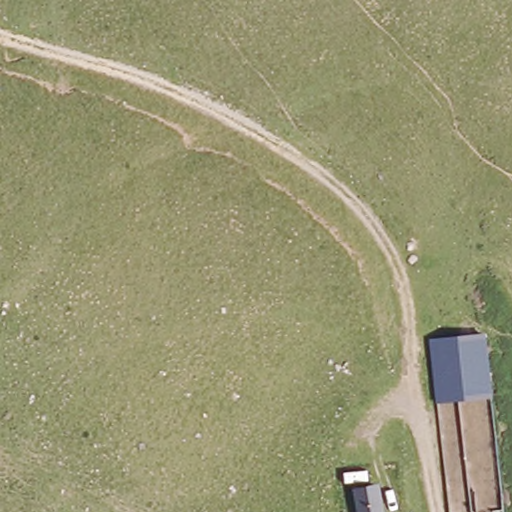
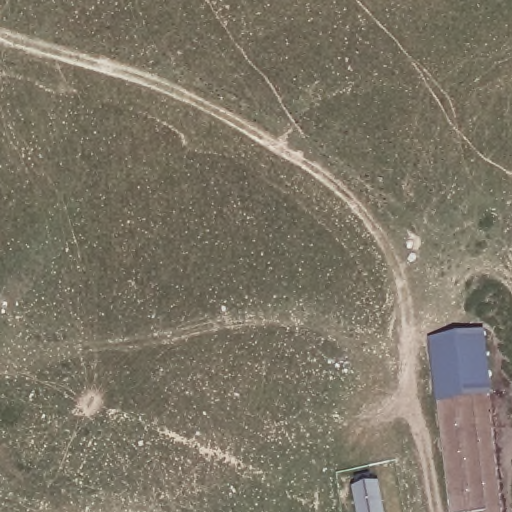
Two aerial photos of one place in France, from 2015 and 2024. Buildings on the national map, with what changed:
unchanged [(491,401),(434,407),(431,338),(486,335),(491,401)]
unchanged [(354,512),(348,490),(377,483),(382,512),(354,512)]

